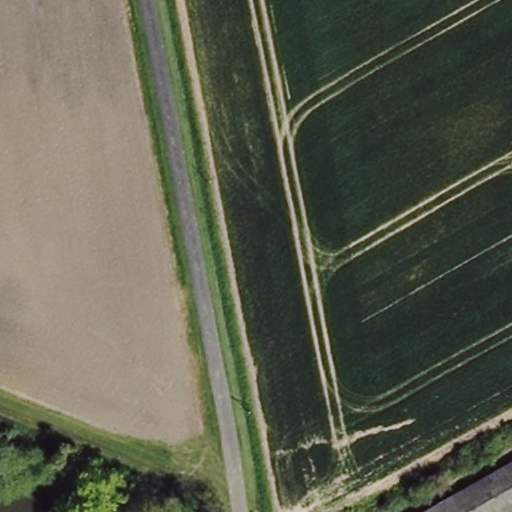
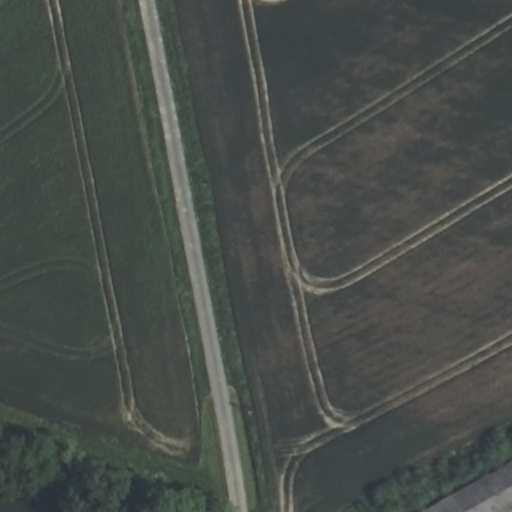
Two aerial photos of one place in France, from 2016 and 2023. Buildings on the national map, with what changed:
unchanged [(512,511),(511,512),(431,512),(512,463),(512,511)]

